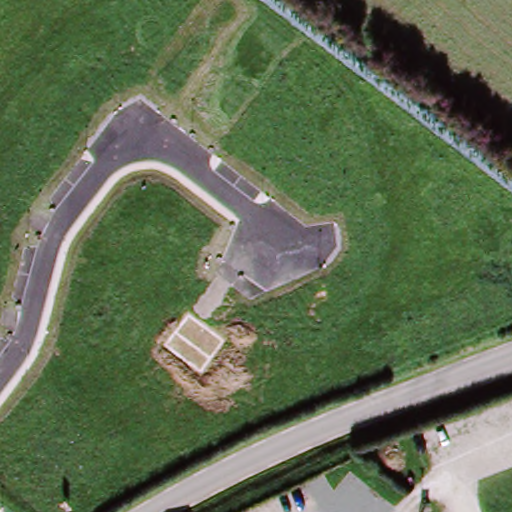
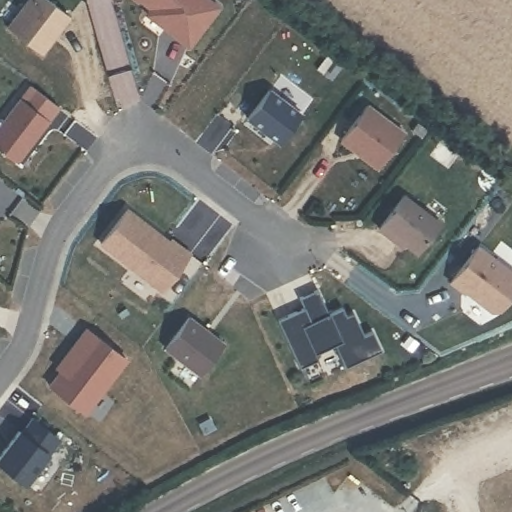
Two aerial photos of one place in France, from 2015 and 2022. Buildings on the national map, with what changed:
new [(28,0),(46,0),(68,16),(42,51),(37,51),(6,28),(28,0)]
new [(218,9),(189,47),(172,34),(175,30),(170,26),(167,30),(148,16),(152,10),(139,0),(207,0),(218,9)]
new [(270,90),(303,115),(281,144),(248,118),(270,90)]
new [(20,99),(47,120),(16,161),(0,149),(0,124),(20,99)]
new [(368,106),(406,135),(380,170),(342,141),(368,106)]
new [(405,197),(442,226),(419,256),(398,241),(397,243),(380,230),(405,197)]
new [(170,240),(173,238),(192,252),(162,292),(98,244),(127,206),(170,240)]
new [(512,273),(512,296),(500,311),(493,312),(467,292),(465,294),(452,284),(479,247),(512,273)]
new [(318,288),(330,313),(345,307),(347,315),(355,312),(365,335),(373,331),(382,350),(345,367),(335,345),(312,355),(315,360),(298,368),(277,316),(305,306),(300,297),(318,288)]
new [(226,343),(201,376),(165,348),(190,315),(226,343)]
new [(72,355),(69,352),(86,330),(126,360),(83,415),(48,387),(72,355)]
new [(18,432),(20,434),(32,420),(59,441),(25,485),(0,467),(0,455),(18,432)]

